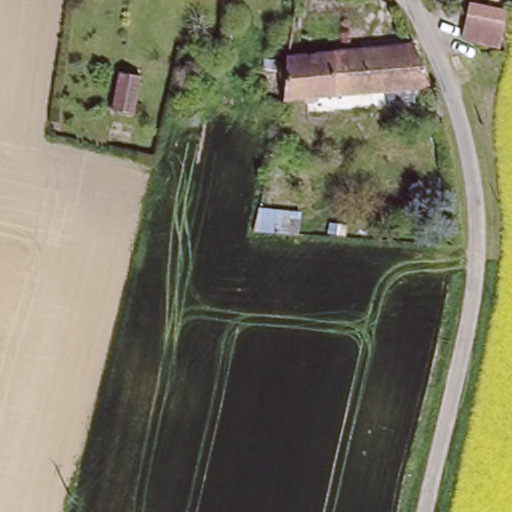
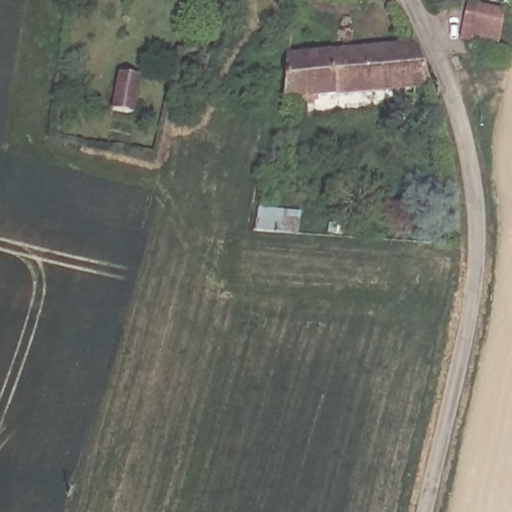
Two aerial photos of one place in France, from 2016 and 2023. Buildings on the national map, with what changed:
unchanged [(469,15),(467,14),(470,3),(507,11),(500,46),(464,38),(469,15)]
unchanged [(285,55),(413,44),(430,86),(283,100),(285,55)]
unchanged [(112,109),(120,73),(141,77),(134,114),(112,109)]

